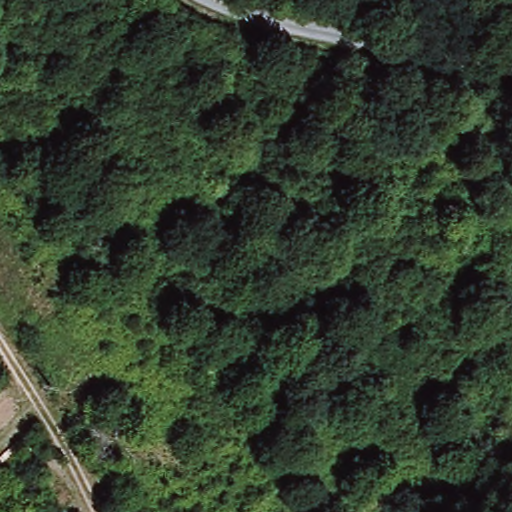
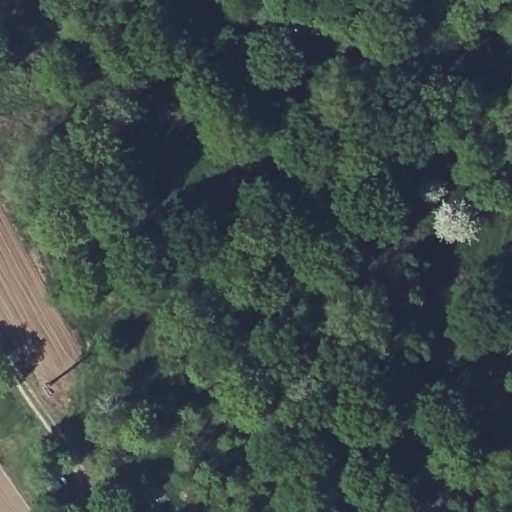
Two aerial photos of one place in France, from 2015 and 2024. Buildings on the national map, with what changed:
[]

